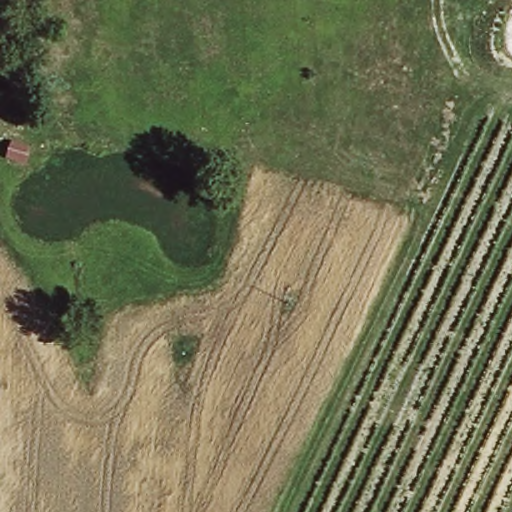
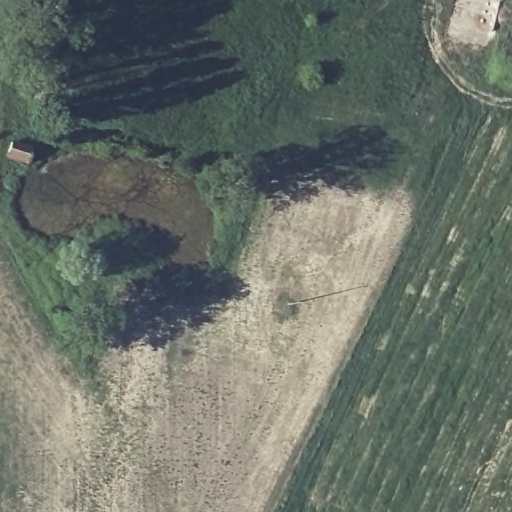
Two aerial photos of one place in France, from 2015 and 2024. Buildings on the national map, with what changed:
unchanged [(30,170),(16,165),(20,153),(34,158),(30,170)]

